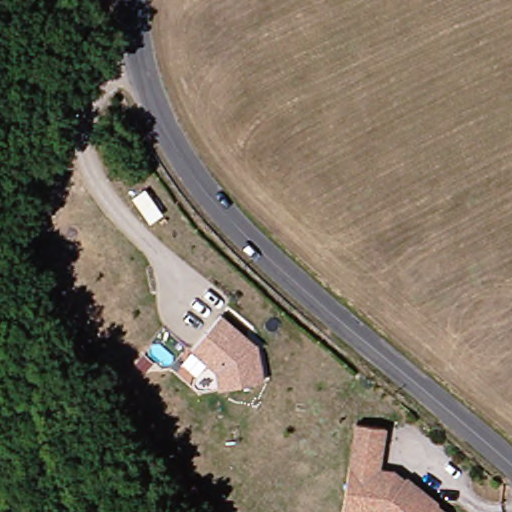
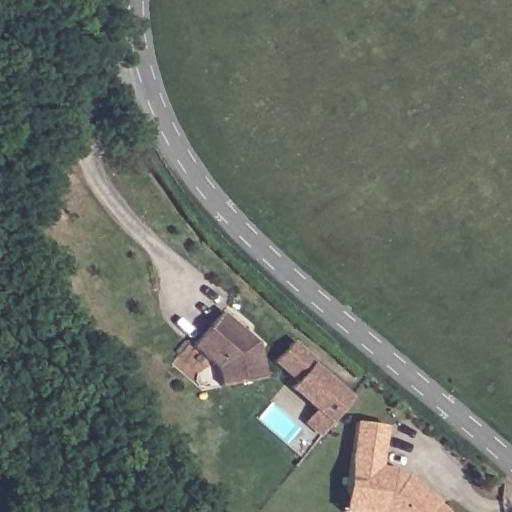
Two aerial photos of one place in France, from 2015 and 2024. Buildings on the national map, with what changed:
unchanged [(241,334),(238,338),(255,354),(260,379),(215,387),(212,369),(187,346),(217,313),(241,334)]
new [(330,425),(289,391),(295,384),(274,366),(294,343),(317,363),(314,366),(351,399),(330,425)]
unchanged [(379,467),(394,469),(405,478),(407,476),(437,502),(436,504),(445,512),(393,512),(383,505),(344,498),(356,422),(386,427),(379,467)]
unchanged [(393,512),(347,512),(341,511),(344,498),(383,505),(393,512)]

